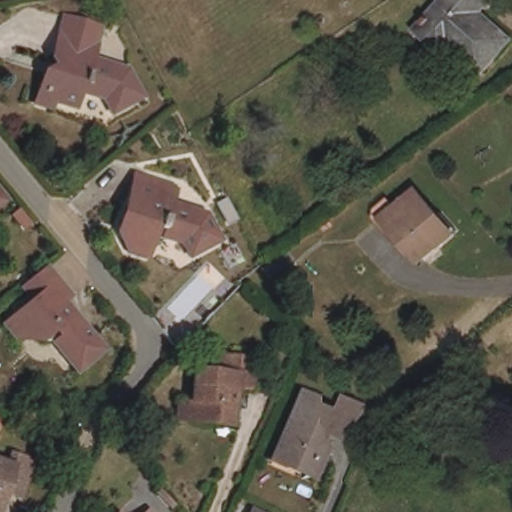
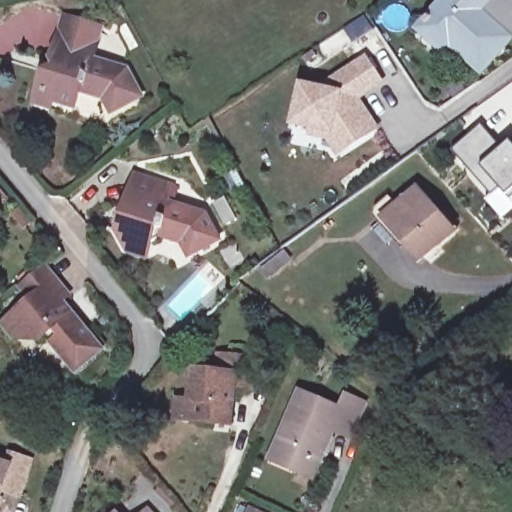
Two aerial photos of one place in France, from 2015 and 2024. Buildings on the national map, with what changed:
unchanged [(425,28),(447,0),(490,0),(482,11),(512,32),(512,33),(485,71),(425,28)]
new [(490,0),(512,0),(512,32),(482,11),(490,0)]
unchanged [(36,90),(40,74),(44,74),(48,63),(55,32),(98,43),(95,61),(110,66),(125,71),(137,99),(107,113),(99,100),(75,94),(71,109),(52,102),(49,110),(32,106),(36,90)]
new [(300,83),(317,86),(367,54),(385,84),(362,100),(381,129),(337,157),(326,140),(310,137),(310,130),(290,127),(300,83)]
new [(502,145),(512,138),(512,199),(512,212),(502,220),(486,200),(490,195),(452,151),(482,124),(502,145)]
unchanged [(105,245),(112,230),(121,207),(125,198),(138,168),(178,185),(173,200),(203,213),(221,241),(187,257),(177,242),(160,235),(150,238),(140,259),(105,245)]
unchanged [(7,199),(0,204),(0,190),(7,199)]
unchanged [(417,262),(383,220),(418,193),(451,233),(417,262)]
unchanged [(7,329),(21,317),(37,304),(30,294),(57,274),(78,304),(70,309),(78,321),(102,350),(72,371),(50,344),(45,348),(35,335),(20,346),(7,329)]
unchanged [(178,398),(190,399),(190,373),(217,376),(216,369),(252,372),(250,399),(240,399),(240,426),(190,422),(178,421),(178,398)]
unchanged [(298,467),(278,459),(303,392),(343,409),(348,396),(365,405),(353,436),(335,428),(323,458),(317,474),(298,467)]
unchanged [(9,462),(5,506),(0,506),(0,461),(9,462)]
unchanged [(152,512),(145,512),(148,508),(152,512)]

